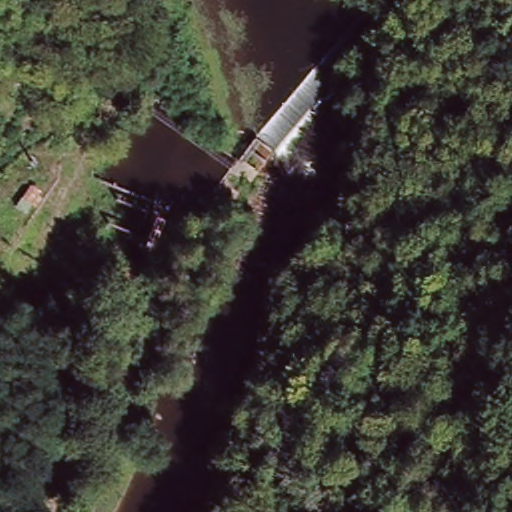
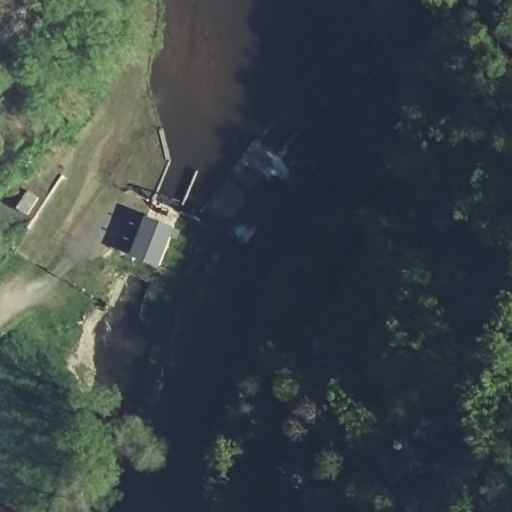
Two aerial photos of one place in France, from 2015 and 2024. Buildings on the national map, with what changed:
new [(158,266),(130,255),(146,214),(175,225),(158,266)]

